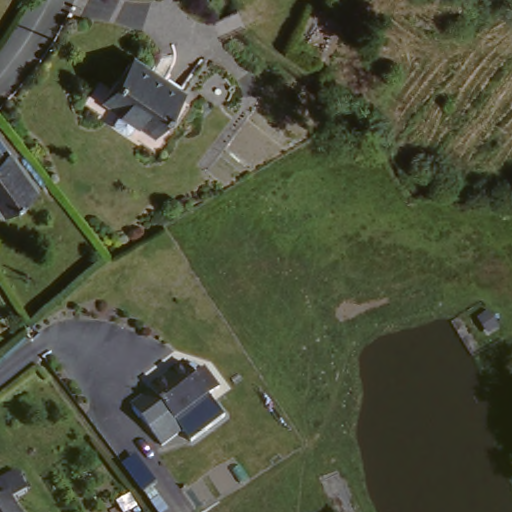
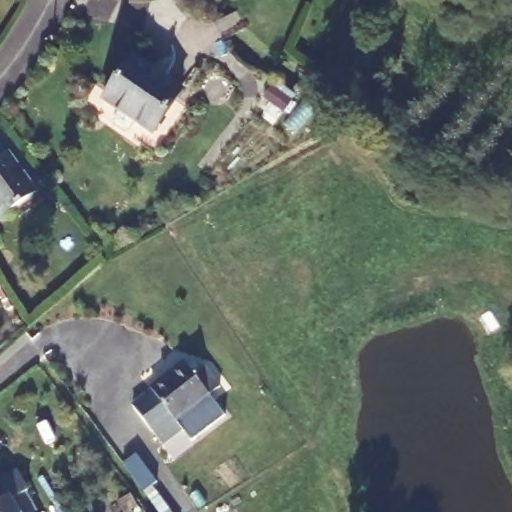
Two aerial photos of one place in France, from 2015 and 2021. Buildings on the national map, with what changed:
unchanged [(112,91),(132,60),(180,91),(157,130),(154,136),(104,105),(112,91)]
unchanged [(34,192),(0,214),(0,157),(9,152),(34,192)]
unchanged [(158,448),(130,410),(151,395),(149,392),(182,366),(187,372),(192,367),(199,376),(205,371),(221,391),(210,400),(212,403),(224,420),(188,445),(180,433),(158,448)]
unchanged [(10,476),(22,494),(7,503),(13,512),(0,512),(0,482),(10,476)]

